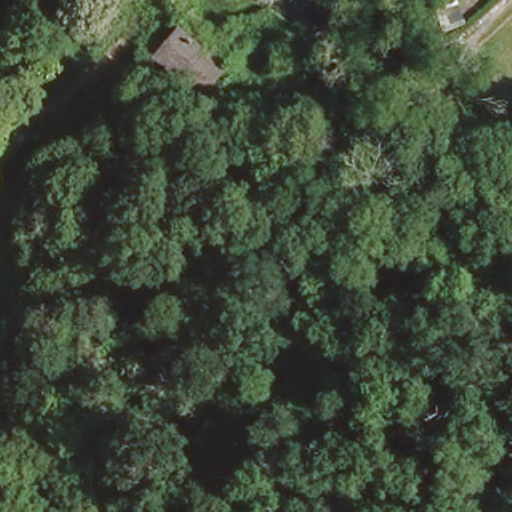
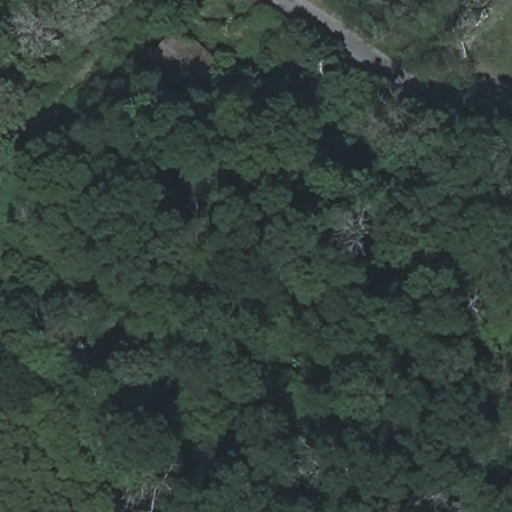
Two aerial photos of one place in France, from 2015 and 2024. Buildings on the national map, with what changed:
unchanged [(151,53),(150,51),(172,26),(207,56),(235,25),(247,34),(219,66),(195,92),(151,53)]
unchanged [(341,75),(338,78),(333,79),(323,74),(323,73),(322,69),(323,64),(327,60),(333,58),(338,59),(341,63),(343,70),(341,75)]

